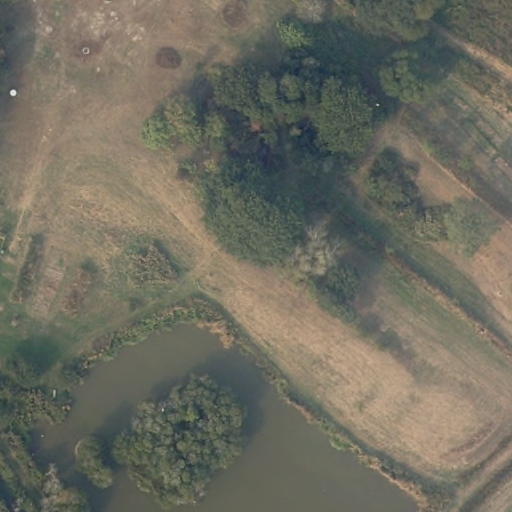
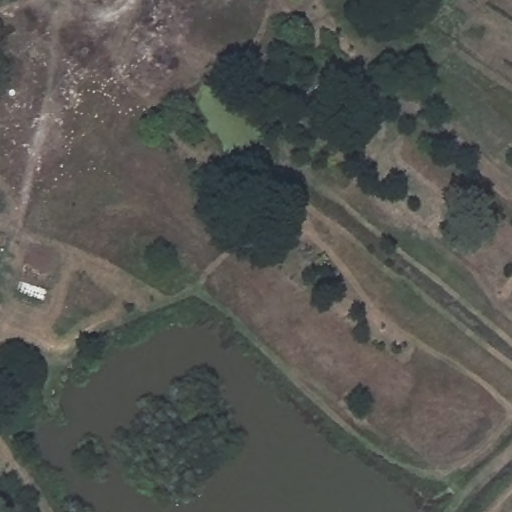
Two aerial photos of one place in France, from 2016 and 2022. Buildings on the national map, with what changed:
[]

